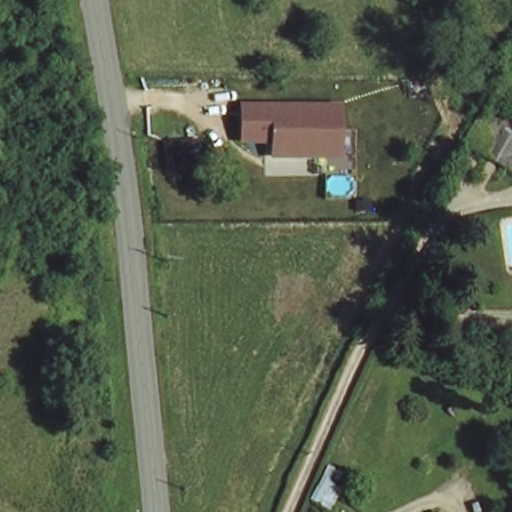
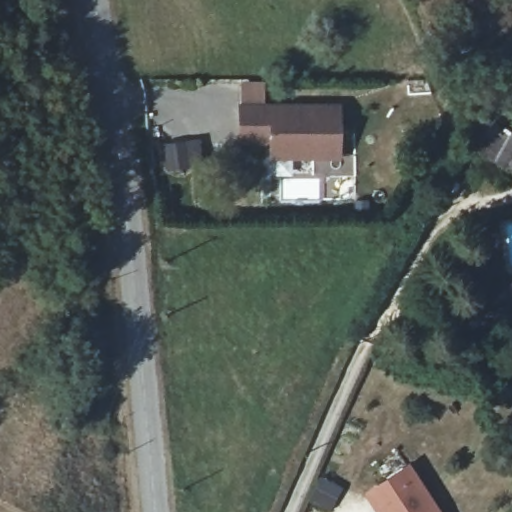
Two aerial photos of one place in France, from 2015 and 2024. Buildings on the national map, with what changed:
unchanged [(343,101),(341,158),(269,160),(268,145),(239,145),(240,102),(343,101)]
unchanged [(469,148),(484,120),(512,132),(512,166),(502,161),(469,148)]
new [(410,462),(442,512),(376,512),(364,492),(410,462)]

